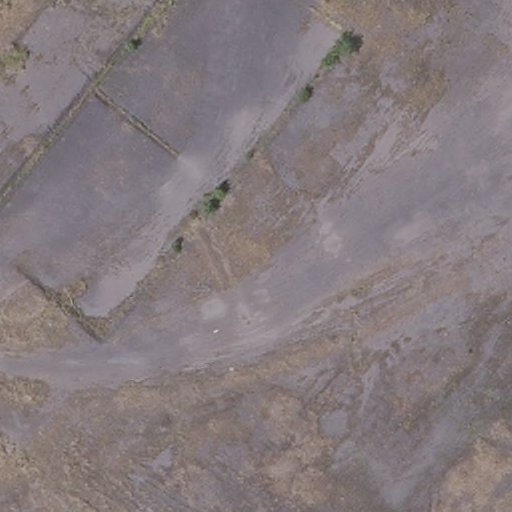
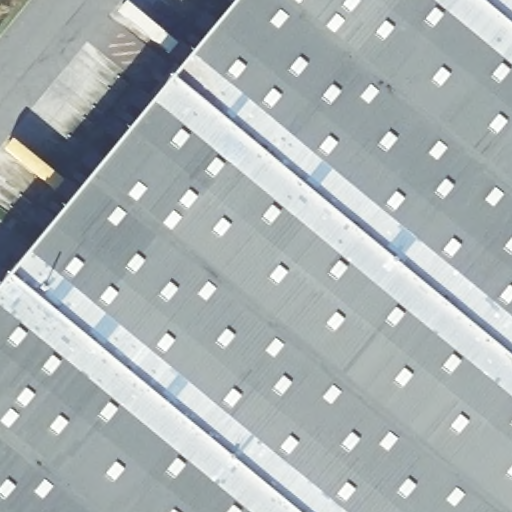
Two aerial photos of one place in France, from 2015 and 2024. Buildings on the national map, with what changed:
new [(512,0),(512,512),(0,512),(0,275),(228,0),(512,0)]

